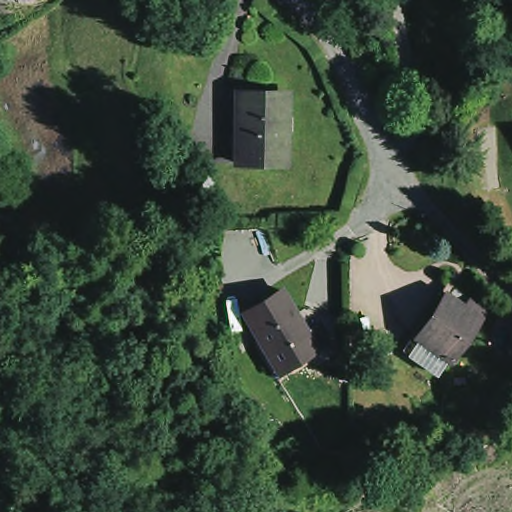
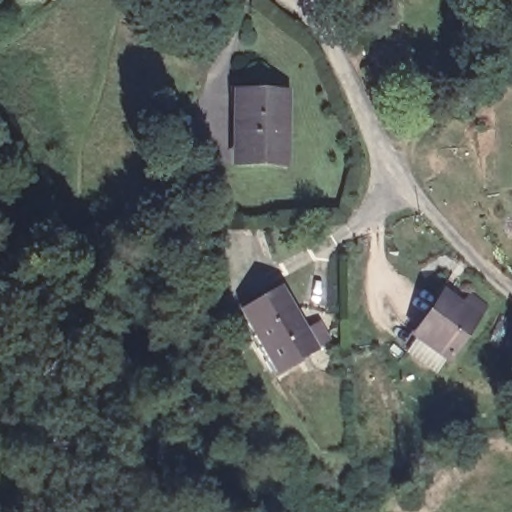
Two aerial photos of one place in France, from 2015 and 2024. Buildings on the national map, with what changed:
unchanged [(287,130),(290,130),(290,165),(242,165),(242,114),(249,114),(250,95),(292,95),(290,117),(288,118),(287,130)]
unchanged [(202,195),(202,165),(218,165),(218,195),(202,195)]
unchanged [(432,381),(403,361),(397,356),(433,305),(441,292),(477,316),(469,328),(442,368),(432,381)]
unchanged [(327,350),(310,360),(274,381),(252,345),(250,346),(237,324),(275,301),(295,335),(312,325),(327,350)]

